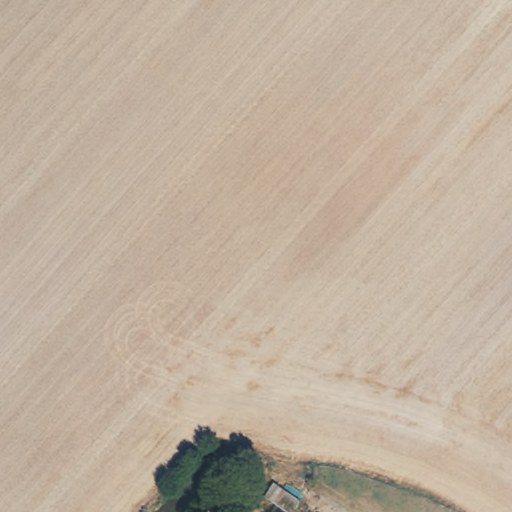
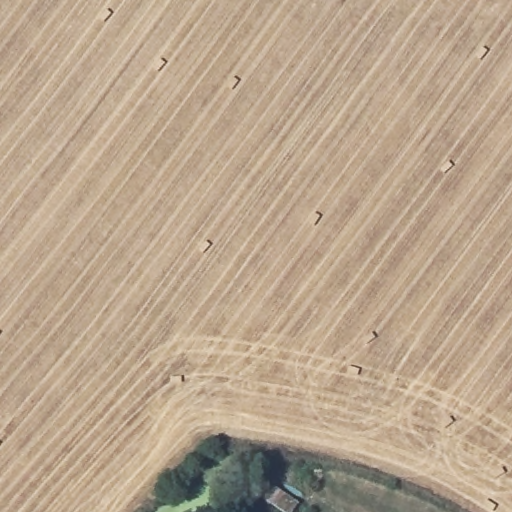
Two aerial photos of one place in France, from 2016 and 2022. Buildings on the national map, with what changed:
unchanged [(295,503),(289,512),(284,512),(263,498),(271,486),(295,503)]

